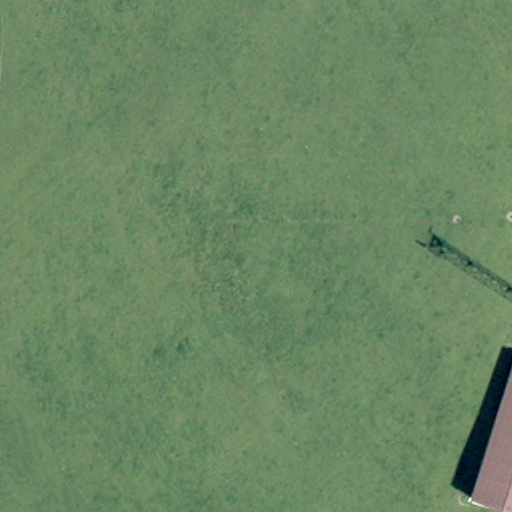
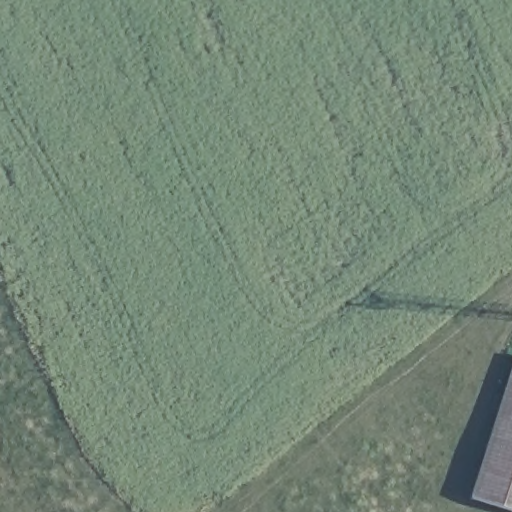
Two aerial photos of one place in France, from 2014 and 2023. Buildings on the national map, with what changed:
unchanged [(508,512),(472,500),(512,383),(512,512),(508,512)]

